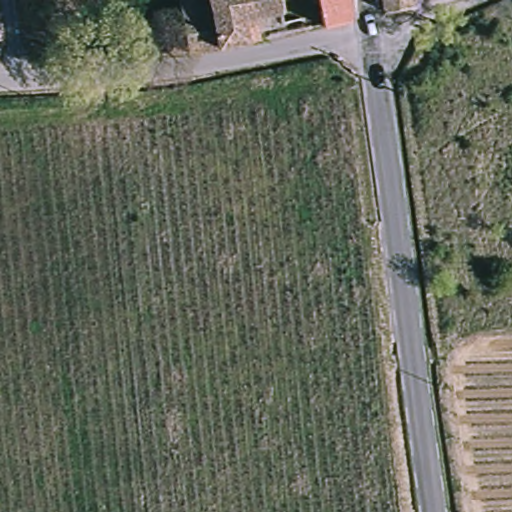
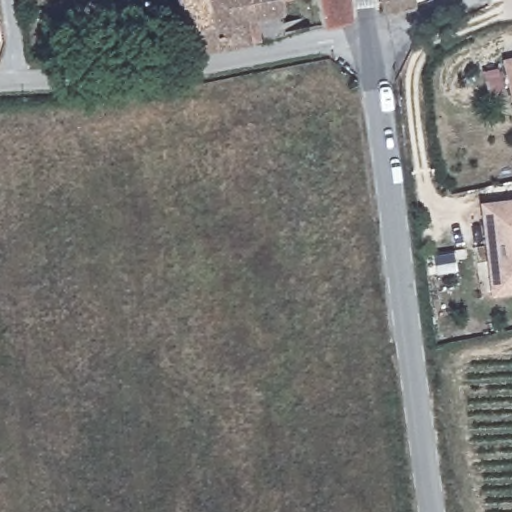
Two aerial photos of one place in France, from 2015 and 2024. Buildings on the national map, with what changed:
unchanged [(19,0),(30,0),(19,2),(19,0)]
unchanged [(181,0),(183,0),(281,0),(279,0),(284,35),(189,55),(161,56),(159,41),(188,35),(181,0)]
unchanged [(317,0),(346,0),(348,20),(322,26),(317,0)]
unchanged [(412,10),(385,16),(380,0),(414,0),(412,0),(412,10)]
new [(507,61),(512,60),(512,80),(507,61)]
new [(493,294),(485,206),(512,204),(512,292),(493,294)]

